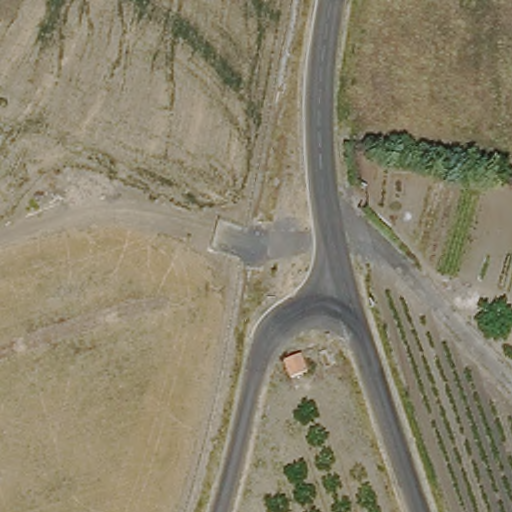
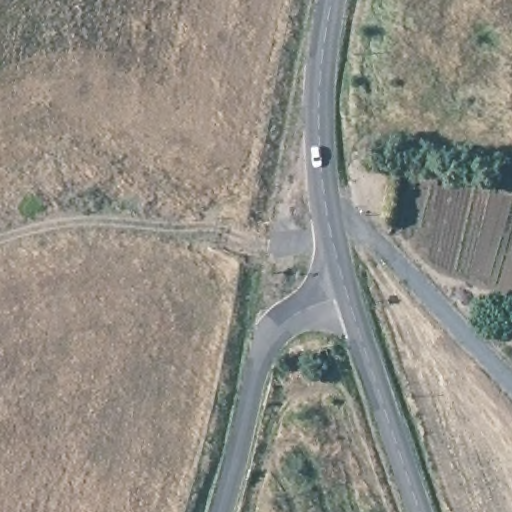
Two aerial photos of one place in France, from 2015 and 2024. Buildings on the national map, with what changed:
unchanged [(306,376),(292,381),(282,365),(297,354),(306,376)]

